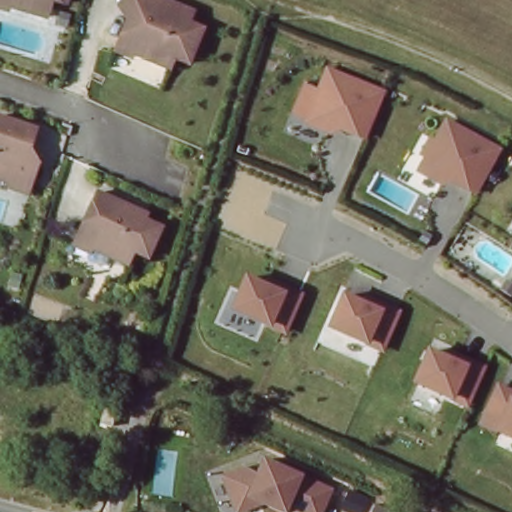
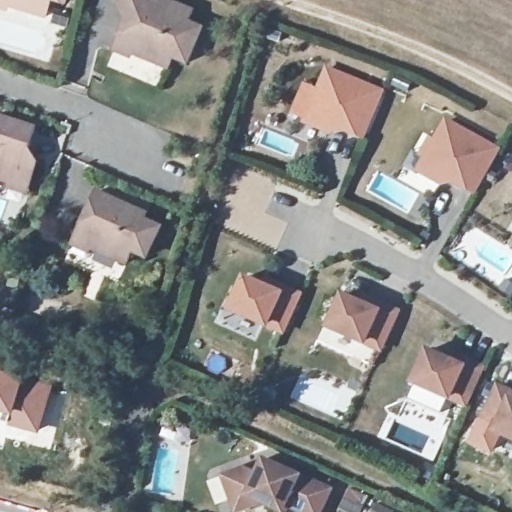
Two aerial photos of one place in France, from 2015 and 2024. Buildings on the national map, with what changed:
unchanged [(52,4),(48,16),(10,4),(11,0),(70,0),(67,9),(52,4)]
unchanged [(112,32),(120,14),(125,16),(130,7),(113,0),(170,0),(185,6),(180,18),(195,24),(180,58),(165,52),(161,63),(124,48),(122,51),(107,45),(112,32)]
unchanged [(380,95),(380,97),(363,135),(361,141),(332,128),(329,134),(305,124),(327,73),(380,95)]
unchanged [(12,186),(0,182),(0,121),(37,133),(27,165),(38,169),(32,188),(30,192),(12,186)]
unchanged [(503,154),(502,156),(482,192),(480,197),(452,180),(447,187),(425,174),(453,125),(503,154)]
unchanged [(153,219),(150,224),(167,232),(154,262),(140,255),(133,269),(97,252),(100,246),(85,239),(93,221),(98,224),(102,214),(97,212),(104,196),(153,219)]
unchanged [(235,310),(249,279),(268,288),(270,282),(287,289),(303,297),(287,333),(287,334),(235,310)]
unchanged [(334,329),(348,298),(367,307),(370,300),(386,308),(402,315),(386,352),(385,352),(334,329)]
unchanged [(420,385),(435,354),(453,363),(457,356),(472,364),(489,371),(472,407),(472,408),(420,385)]
new [(39,434),(10,426),(13,418),(0,414),(0,370),(27,378),(53,384),(39,434)]
unchanged [(487,427),(505,390),(512,393),(512,438),(487,427)]
unchanged [(328,512),(296,512),(289,509),(288,512),(277,512),(265,507),(252,512),(237,512),(223,475),(248,467),(257,470),(262,456),(338,487),(328,512)]

